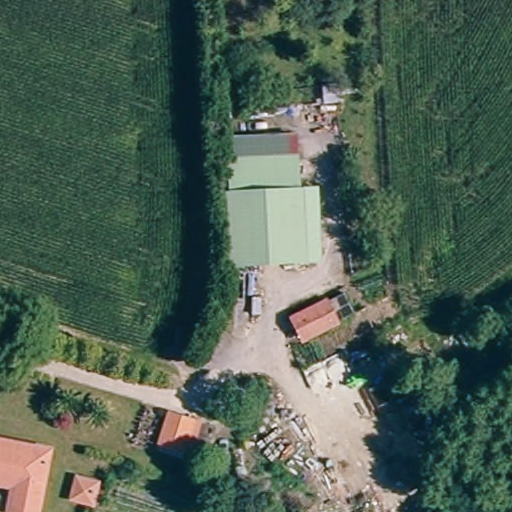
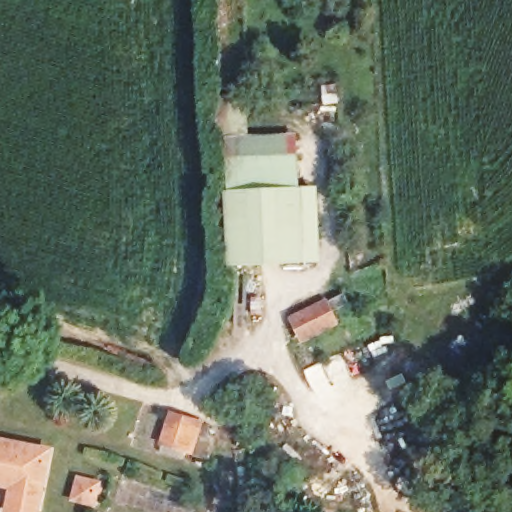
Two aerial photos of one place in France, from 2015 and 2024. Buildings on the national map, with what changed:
unchanged [(221,157),(297,156),(295,191),(222,195),(221,157)]
unchanged [(295,191),(304,190),(307,269),(226,271),(222,195),(295,191)]
unchanged [(325,307),(335,328),(306,343),(295,322),(325,307)]
unchanged [(174,409),(212,424),(209,433),(217,436),(207,462),(159,445),(174,409)]
unchanged [(7,489),(0,487),(0,448),(41,455),(32,512),(3,512),(7,489)]
unchanged [(226,511),(225,512),(113,512),(114,510),(126,476),(226,511)]

